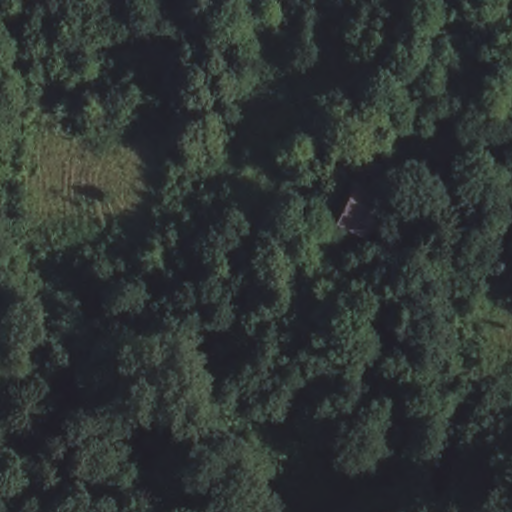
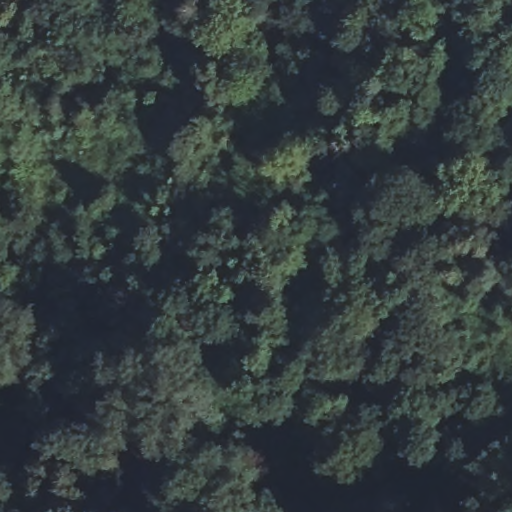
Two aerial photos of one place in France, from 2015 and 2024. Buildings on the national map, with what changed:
unchanged [(429,229),(416,258),(410,273),(392,264),(397,251),(366,236),(378,204),(429,229)]
unchanged [(411,316),(449,345),(429,371),(392,340),(411,316)]

